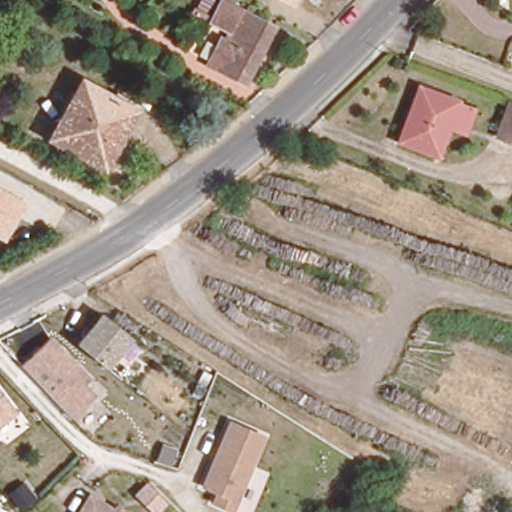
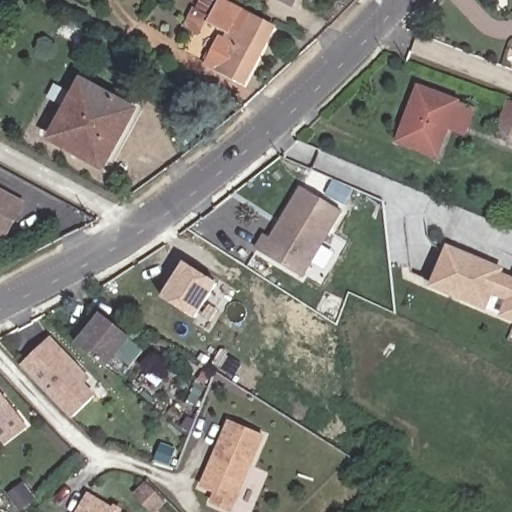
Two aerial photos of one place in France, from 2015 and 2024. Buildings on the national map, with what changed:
unchanged [(281,0),(295,0),(292,5),(281,0)]
unchanged [(244,84),(206,65),(221,37),(224,39),(227,33),(209,24),(220,3),(272,29),(244,84)]
unchanged [(75,148),(73,153),(50,141),(82,83),(133,110),(104,164),(75,148)]
unchanged [(417,89),(474,111),(465,134),(447,128),(436,157),(398,143),(417,89)]
unchanged [(494,139),(507,103),(512,104),(512,146),(494,139)]
unchanged [(0,240),(0,188),(26,202),(5,243),(0,240)]
new [(302,279),(261,254),(301,188),(341,211),(302,279)]
new [(431,285),(447,244),(512,272),(512,320),(431,285)]
new [(183,260),(216,281),(194,315),(161,294),(183,260)]
unchanged [(130,338),(106,369),(74,345),(97,312),(130,338)]
unchanged [(50,338),(101,389),(69,418),(21,366),(50,338)]
unchanged [(0,432),(0,395),(19,418),(0,432)]
unchanged [(265,438),(237,512),(218,512),(208,508),(213,496),(198,489),(225,422),(265,438)]
unchanged [(88,494),(119,512),(78,512),(88,494)]

